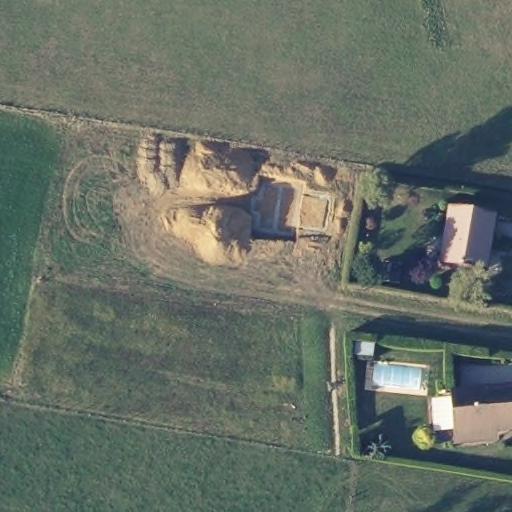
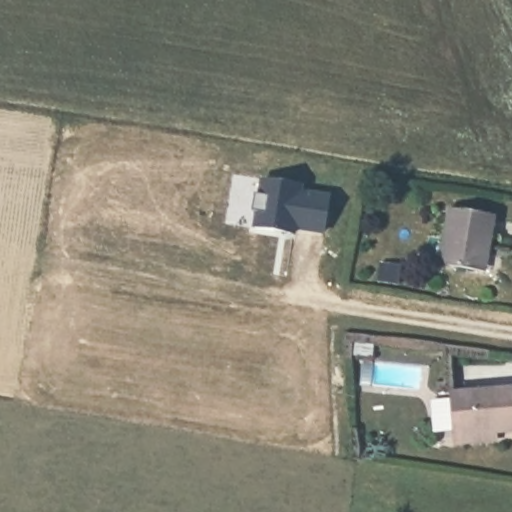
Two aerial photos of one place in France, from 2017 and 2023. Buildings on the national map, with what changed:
new [(331,193),(325,233),(295,228),(295,234),(255,226),(262,179),(305,184),(304,188),(331,193)]
unchanged [(498,206),(494,233),(489,232),(484,259),(442,252),(450,199),(498,206)]
unchanged [(396,276),(377,275),(379,259),(397,261),(396,276)]
unchanged [(459,437),(457,424),(453,382),(512,378),(512,420),(496,421),(496,435),(459,437)]

